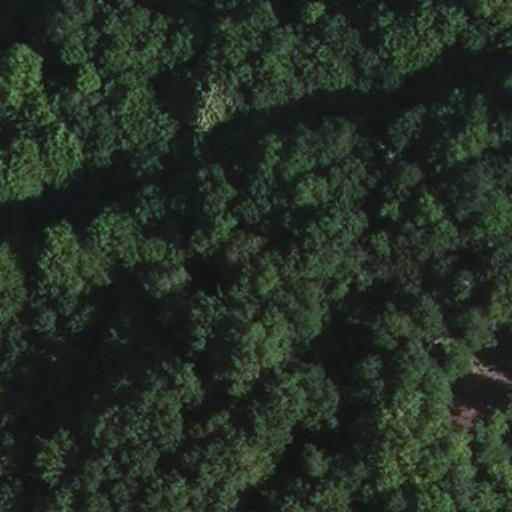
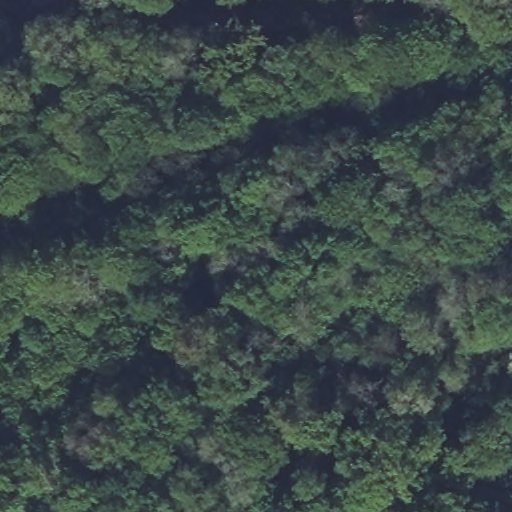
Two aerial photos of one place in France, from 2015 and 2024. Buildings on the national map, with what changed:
[]

